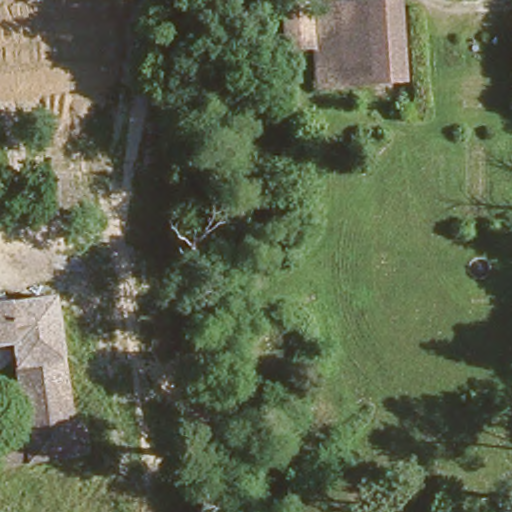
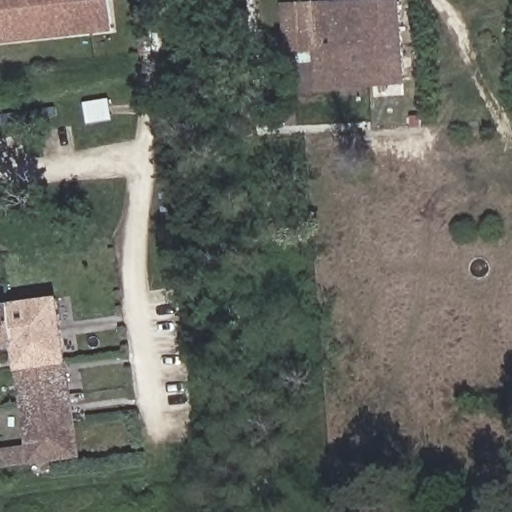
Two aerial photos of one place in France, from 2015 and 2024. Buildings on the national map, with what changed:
new [(115,31),(0,42),(0,0),(112,0),(115,31)]
unchanged [(402,2),(406,81),(317,86),(314,49),(285,50),(283,9),(402,2)]
unchanged [(286,194),(289,233),(272,234),(270,195),(286,194)]
unchanged [(245,197),(247,237),(233,237),(229,198),(245,197)]
unchanged [(69,407),(80,406),(85,447),(0,458),(0,441),(19,439),(9,346),(0,348),(0,297),(54,290),(69,407)]

